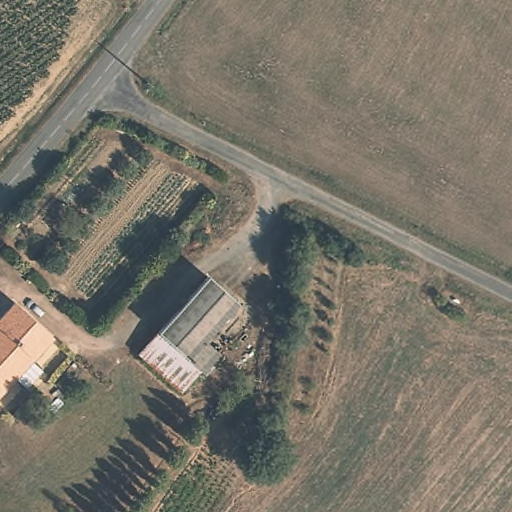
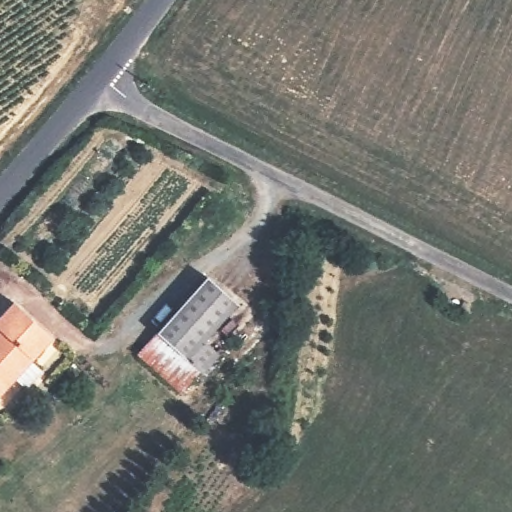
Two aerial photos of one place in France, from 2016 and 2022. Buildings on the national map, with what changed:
unchanged [(208,274),(240,302),(208,338),(225,353),(207,373),(203,370),(160,331),(208,274)]
unchanged [(55,335),(0,396),(0,314),(14,298),(55,335)]
unchanged [(203,370),(183,392),(140,354),(160,331),(203,370)]

